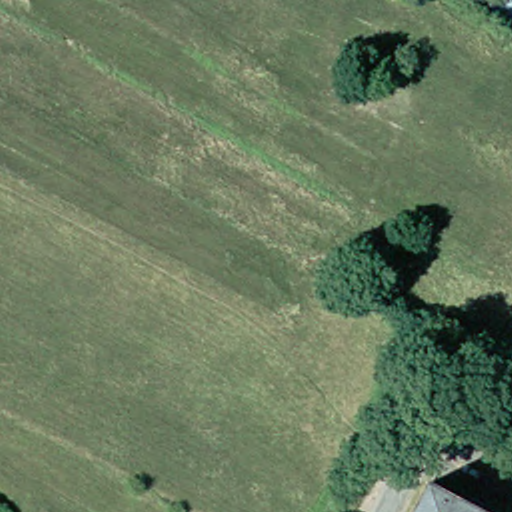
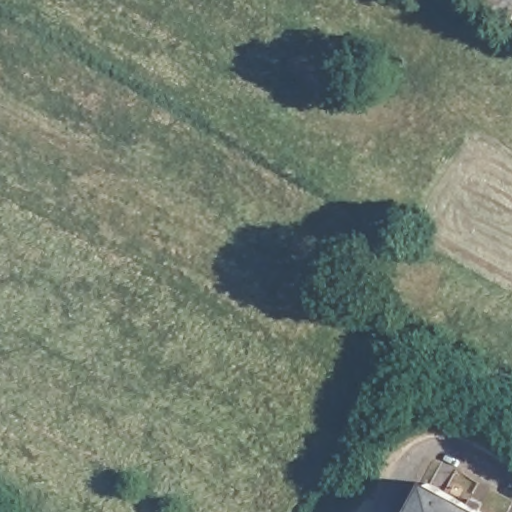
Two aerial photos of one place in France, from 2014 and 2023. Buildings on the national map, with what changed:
unchanged [(483,0),(511,0),(504,13),(483,0)]
unchanged [(409,512),(429,476),(495,512),(409,512)]

